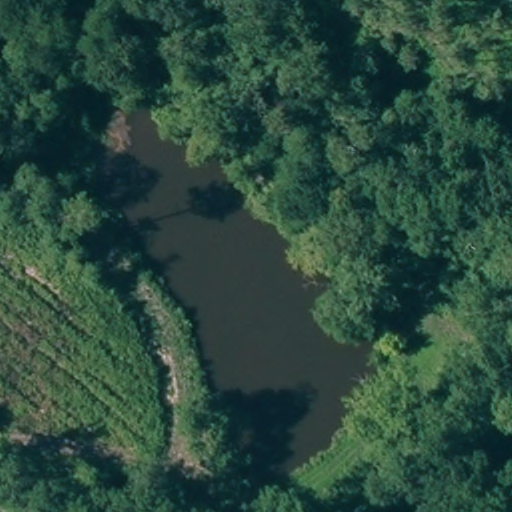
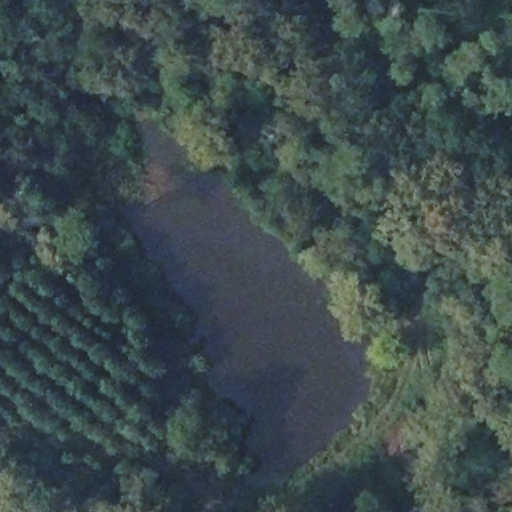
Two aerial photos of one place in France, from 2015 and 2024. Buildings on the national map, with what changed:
unchanged [(207,484),(195,485),(194,472),(206,472),(207,484)]

